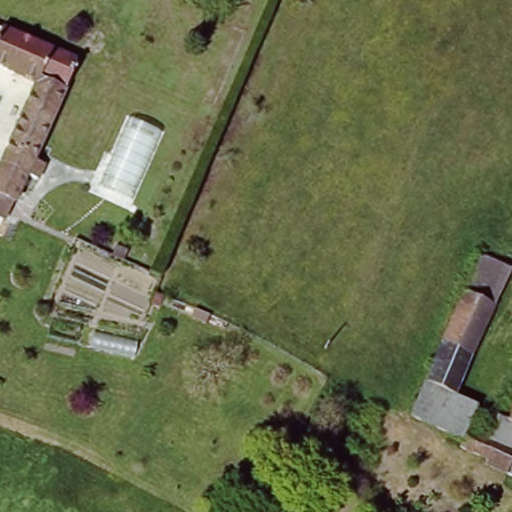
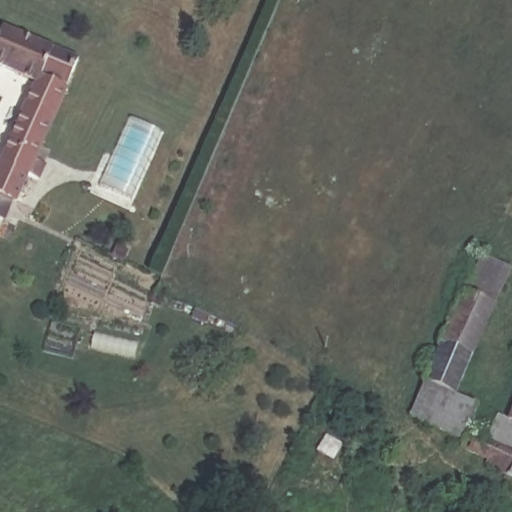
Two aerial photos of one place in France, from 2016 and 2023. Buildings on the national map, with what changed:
unchanged [(29,80),(0,66),(0,25),(50,45),(73,54),(62,85),(58,92),(11,195),(0,190),(0,146),(29,80)]
unchanged [(510,263),(455,396),(471,403),(462,427),(483,436),(492,415),(507,422),(512,411),(512,479),(502,476),(505,470),(452,447),(455,440),(405,419),(475,250),(510,263)]

